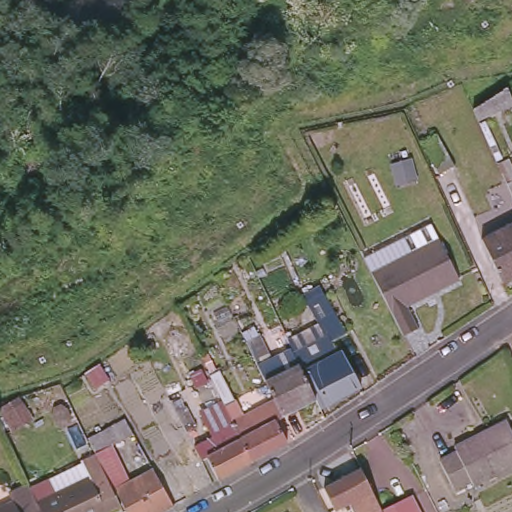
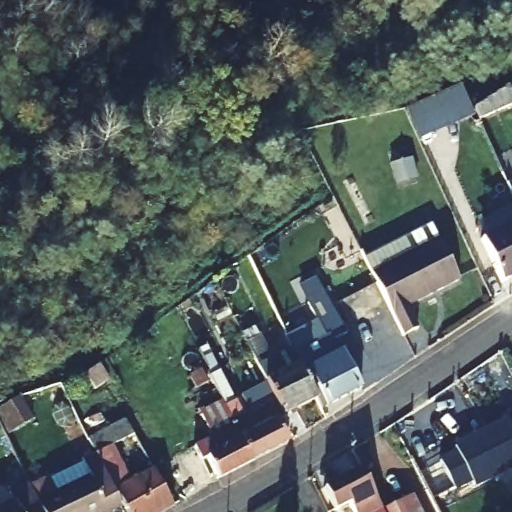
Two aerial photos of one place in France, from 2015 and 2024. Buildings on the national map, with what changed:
new [(473,116),(419,140),(405,110),(460,85),(473,116)]
unchanged [(508,86),(512,96),(512,105),(479,120),(474,108),(508,86)]
demolished [(438,134),(456,166),(440,175),(422,143),(438,134)]
unchanged [(512,187),(512,207),(503,188),(511,185),(512,187)]
unchanged [(497,287),(477,243),(512,225),(512,279),(497,287)]
unchanged [(378,268),(444,233),(466,274),(413,300),(424,323),(409,331),(378,268)]
unchanged [(330,299),(352,339),(334,348),(313,308),(330,299)]
unchanged [(269,337),(266,339),(279,365),(298,356),(299,359),(323,404),(288,421),(280,405),(246,337),(264,328),(269,337)]
unchanged [(334,362),(348,355),(367,392),(328,413),(323,404),(299,359),(325,346),(334,362)]
unchanged [(96,389),(86,373),(101,362),(110,380),(96,389)]
unchanged [(196,383),(212,375),(226,401),(209,409),(196,383)]
unchanged [(224,484),(213,463),(208,466),(176,405),(183,402),(193,410),(209,444),(218,440),(208,420),(230,410),(239,427),(254,468),(224,484)]
unchanged [(280,405),(288,421),(281,425),(293,447),(254,468),(239,427),(280,405)]
unchanged [(136,434),(113,445),(131,480),(153,468),(174,504),(160,512),(128,512),(123,504),(121,505),(103,469),(88,439),(127,418),(136,434)]
unchanged [(474,486),(472,481),(454,489),(439,460),(457,451),(454,446),(507,420),(512,430),(512,466),(474,486)]
unchanged [(36,501),(103,469),(121,505),(107,512),(41,512),(36,501)]
unchanged [(382,510),(383,512),(353,512),(349,503),(335,510),(325,489),(362,470),(382,510)]
unchanged [(0,507),(13,500),(8,492),(28,483),(36,501),(41,512),(0,512),(0,507)]
unchanged [(412,494),(421,512),(383,512),(382,510),(412,494)]

